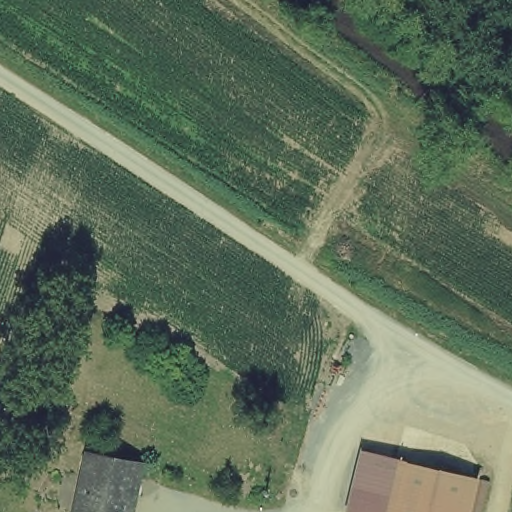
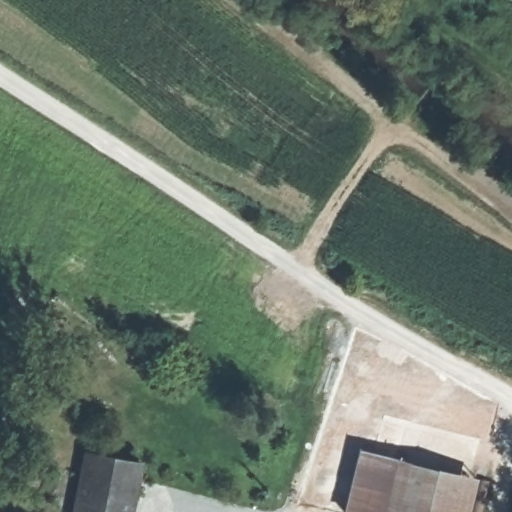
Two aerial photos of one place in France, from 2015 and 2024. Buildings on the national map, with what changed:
unchanged [(68,512),(80,449),(139,463),(131,512),(68,512)]
unchanged [(347,512),(362,451),(479,478),(471,512),(347,512)]

